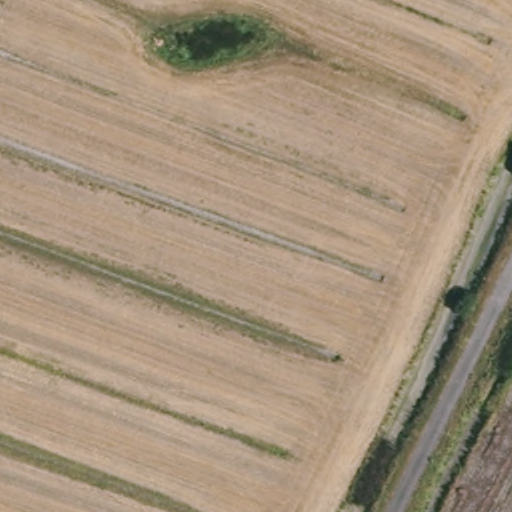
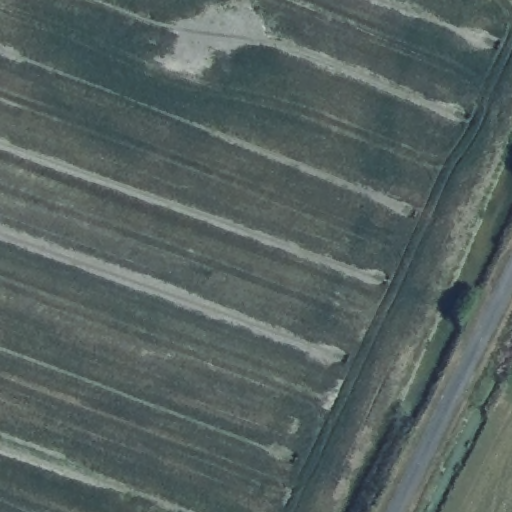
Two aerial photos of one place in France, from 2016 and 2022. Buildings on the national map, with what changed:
[]

